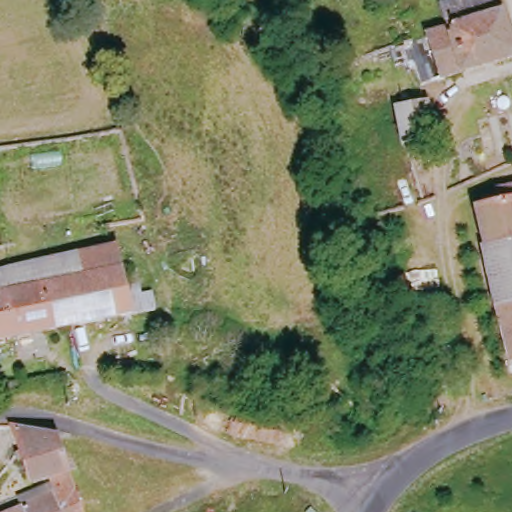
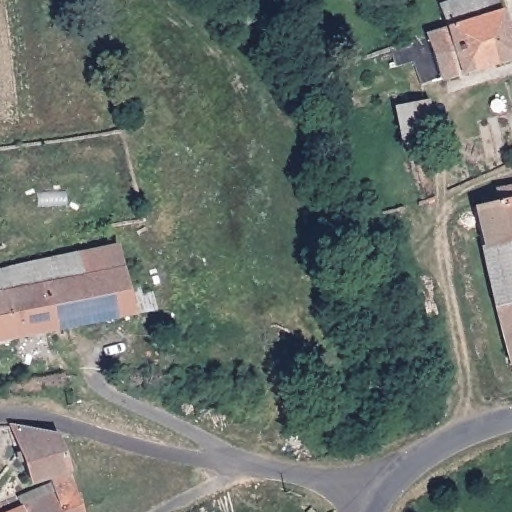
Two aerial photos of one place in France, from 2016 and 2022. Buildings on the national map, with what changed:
unchanged [(433,84),(419,35),(441,31),(433,5),(449,0),(491,0),(496,14),(511,61),(459,77),(433,84)]
unchanged [(391,109),(424,99),(431,138),(401,147),(391,109)]
unchanged [(512,197),(512,368),(504,370),(464,213),(481,208),(478,198),(511,190),(512,197)]
unchanged [(511,190),(512,190),(512,197),(511,190)]
unchanged [(0,272),(109,252),(113,269),(0,291),(0,272)]
unchanged [(117,288),(129,285),(133,302),(149,299),(151,314),(0,344),(0,291),(113,269),(117,288)]
unchanged [(63,477),(41,484),(22,491),(6,436),(52,441),(54,450),(63,477)]
unchanged [(0,511),(47,495),(41,484),(63,477),(74,512),(0,512),(0,511)]

